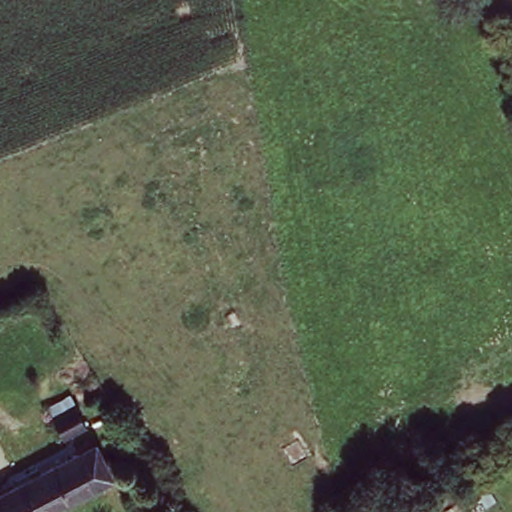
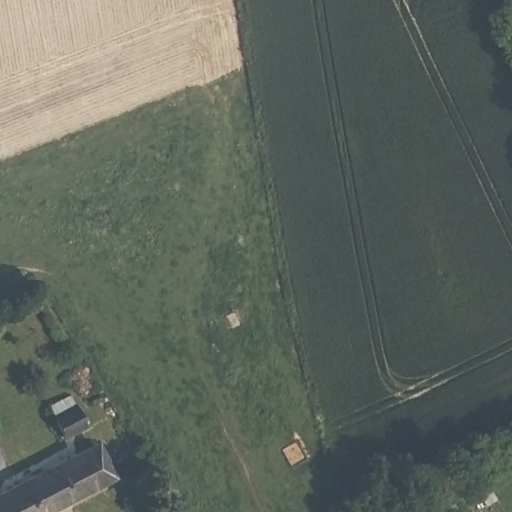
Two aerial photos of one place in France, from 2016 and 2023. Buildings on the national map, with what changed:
unchanged [(85,424),(62,435),(47,405),(70,392),(85,424)]
unchanged [(112,480),(48,512),(0,512),(0,498),(20,487),(17,481),(38,471),(41,477),(94,448),(112,480)]

